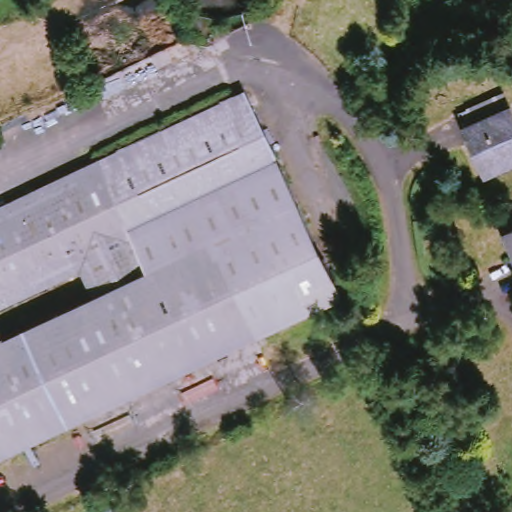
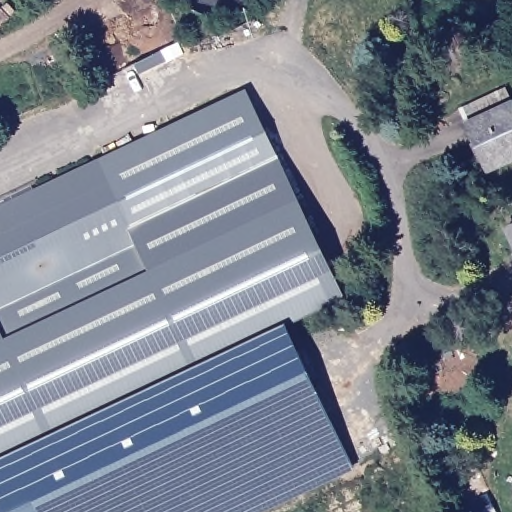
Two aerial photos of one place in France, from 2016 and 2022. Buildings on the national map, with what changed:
unchanged [(466,106),(512,85),(512,165),(492,174),(469,121),(466,106)]
unchanged [(260,92),(356,310),(0,469),(0,210),(260,92)]
new [(355,469),(265,512),(0,512),(0,470),(291,340),(355,469)]
demolished [(125,506),(128,512),(110,512),(125,506)]

